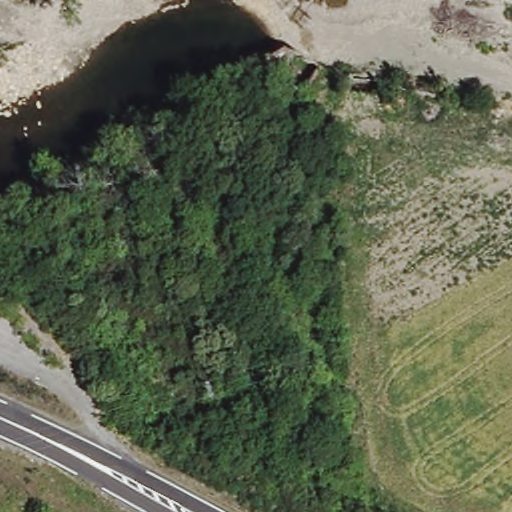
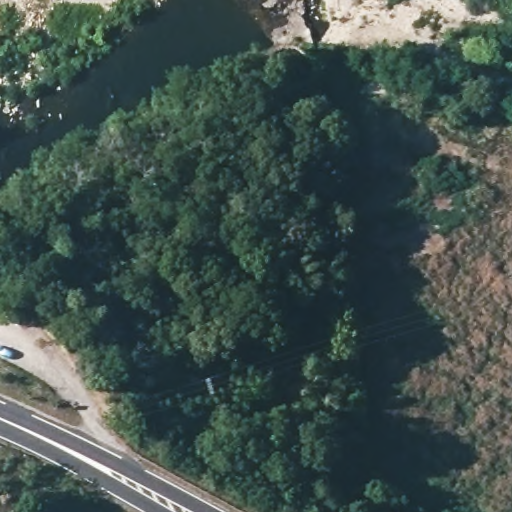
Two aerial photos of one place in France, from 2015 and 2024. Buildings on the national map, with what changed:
unchanged [(274,48),(324,71),(312,99),(262,72),(274,48)]

